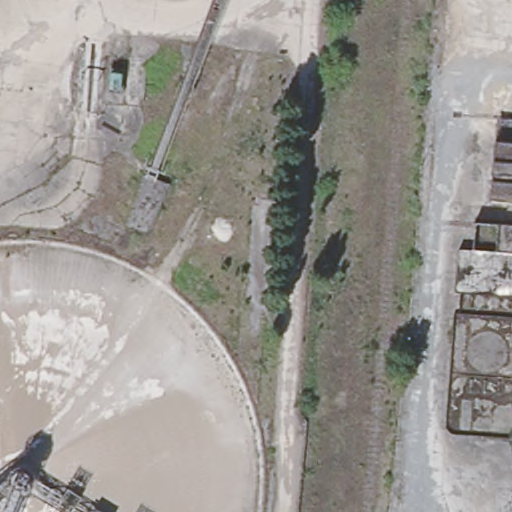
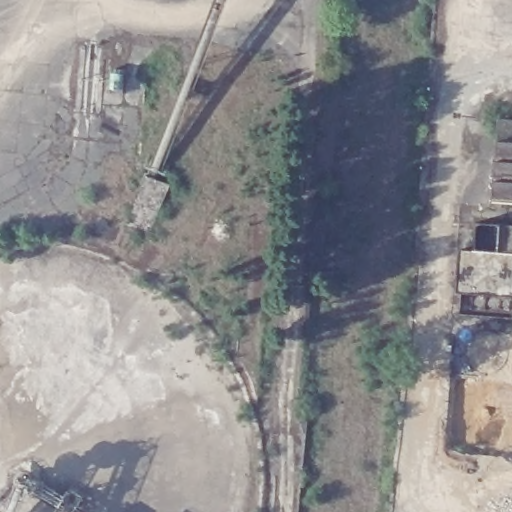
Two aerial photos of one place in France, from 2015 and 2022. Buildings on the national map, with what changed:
unchanged [(497,197),(503,116),(512,116),(512,198),(497,197)]
unchanged [(477,227),(512,229),(512,258),(475,257),(477,227)]
unchanged [(512,258),(512,298),(459,295),(461,256),(475,257),(512,258)]

